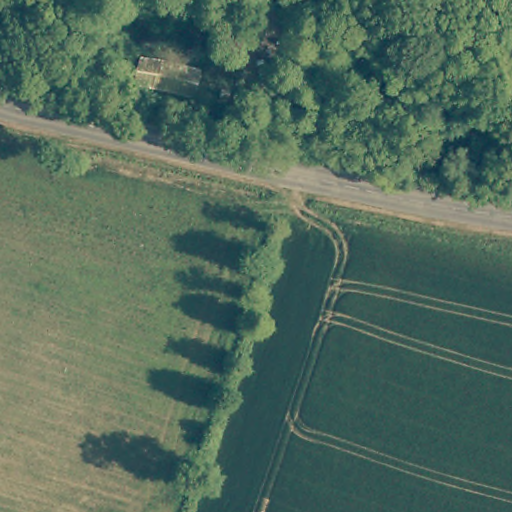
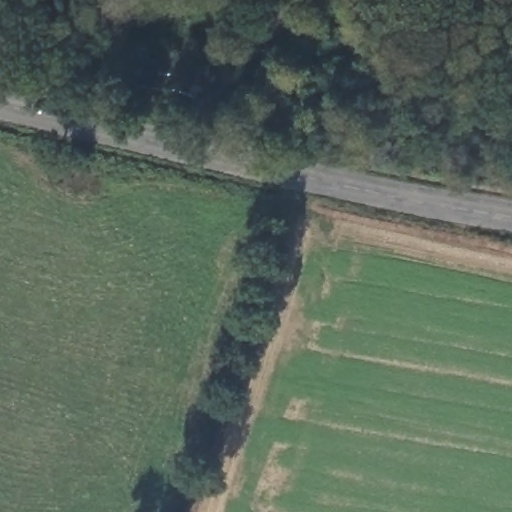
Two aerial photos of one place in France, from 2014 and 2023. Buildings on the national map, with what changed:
unchanged [(282,1),(276,34),(246,28),(242,28),(247,0),(279,0),(282,1)]
unchanged [(303,5),(319,8),(314,40),(297,36),(303,5)]

